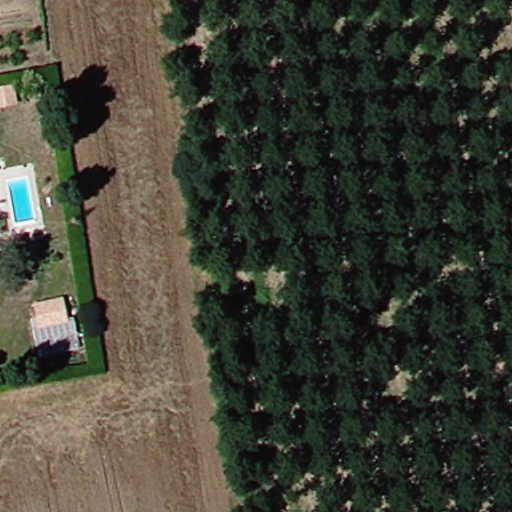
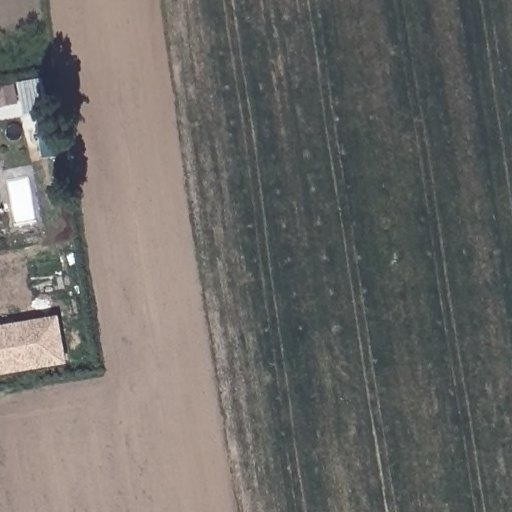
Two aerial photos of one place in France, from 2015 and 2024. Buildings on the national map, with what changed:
new [(58,316),(66,365),(0,376),(0,326),(58,316)]

